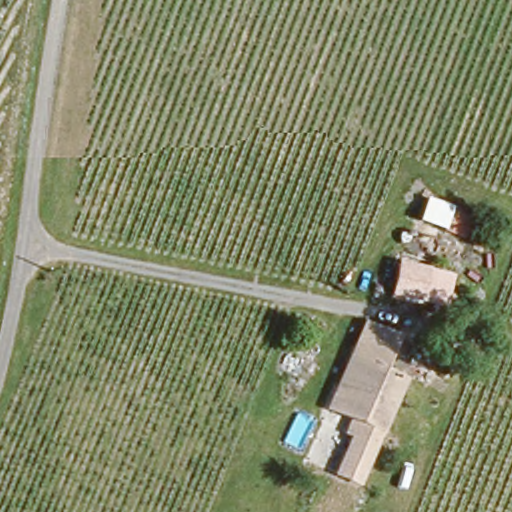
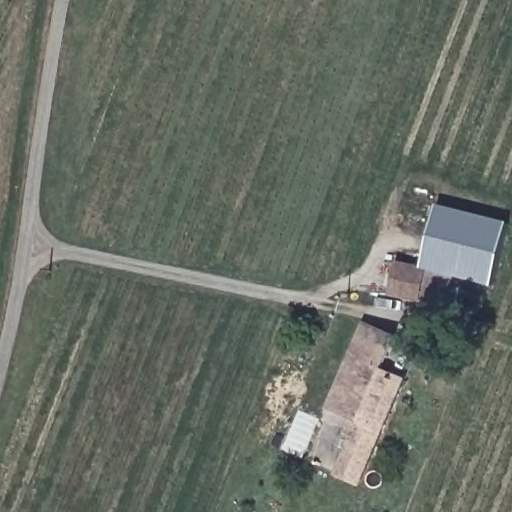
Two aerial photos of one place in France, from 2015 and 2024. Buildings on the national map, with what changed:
new [(450,277),(447,280),(426,276),(428,265),(423,264),(440,205),(511,224),(495,288),(450,277)]
demolished [(463,237),(447,232),(452,216),(468,222),(463,237)]
unchanged [(428,265),(426,276),(447,280),(446,290),(435,288),(433,293),(393,287),(398,260),(428,265)]
unchanged [(360,323),(395,336),(380,374),(347,362),(360,323)]
unchanged [(336,477),(350,440),(337,435),(341,426),(344,418),(327,411),(347,362),(380,374),(397,381),(376,430),(390,436),(384,452),(370,447),(356,484),(336,477)]

